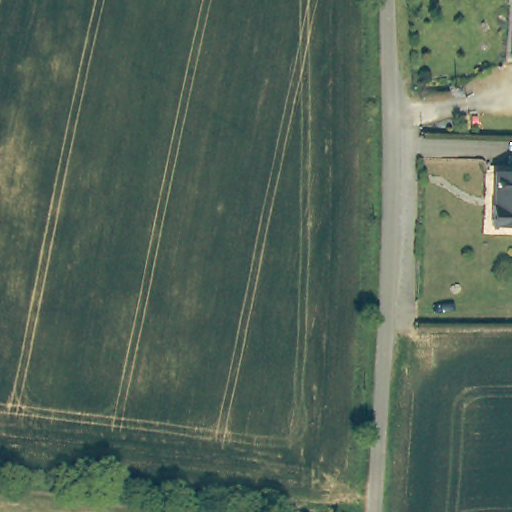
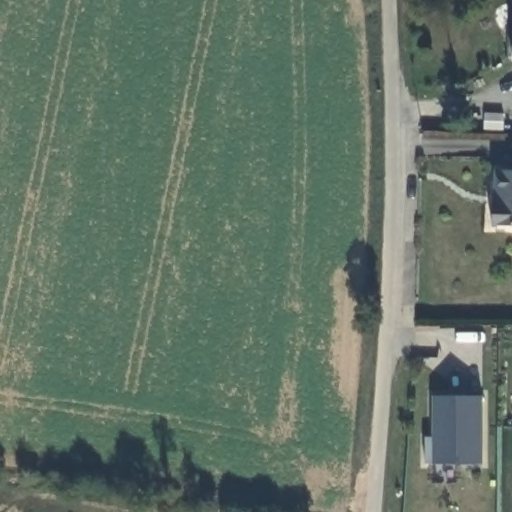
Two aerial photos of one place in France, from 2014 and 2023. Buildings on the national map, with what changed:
unchanged [(511,56),(512,41),(512,56),(511,56)]
unchanged [(511,61),(511,56),(512,56),(512,61),(511,61)]
unchanged [(512,167),(512,223),(494,222),(495,200),(499,200),(500,167),(512,167)]
new [(482,464),(424,463),(423,437),(431,437),(431,396),(481,396),(482,464)]

